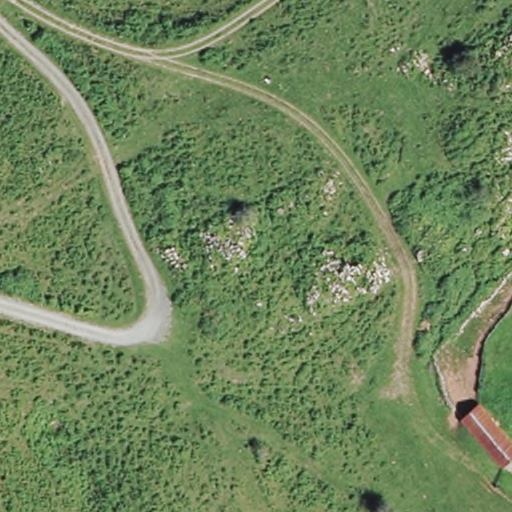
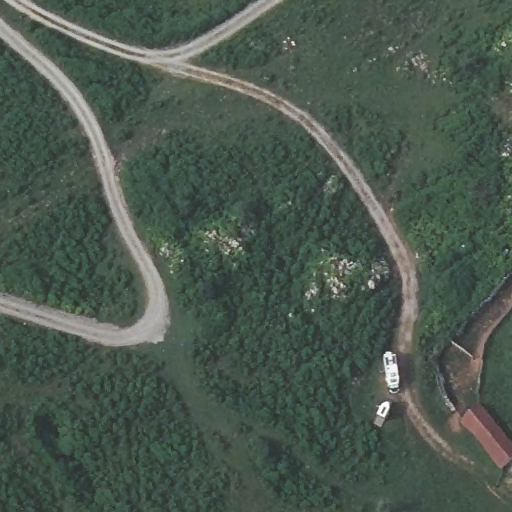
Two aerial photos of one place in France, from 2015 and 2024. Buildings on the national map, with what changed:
unchanged [(465,418),(478,407),(512,455),(512,463),(503,471),(465,418)]

